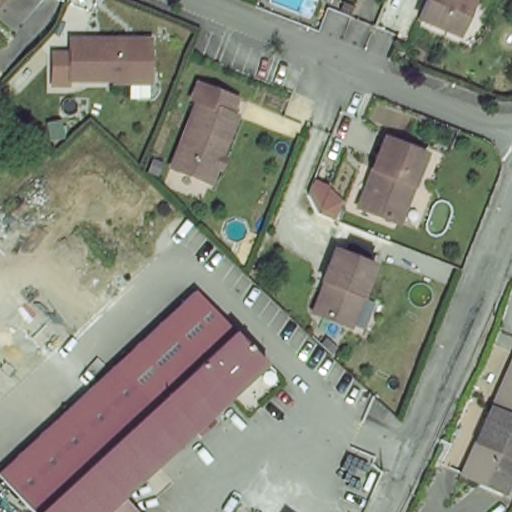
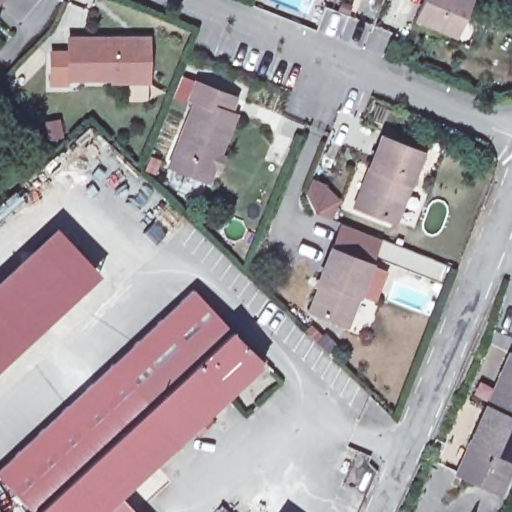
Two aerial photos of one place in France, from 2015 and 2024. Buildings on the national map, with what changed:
unchanged [(417,18),(424,0),(469,0),(455,34),(417,18)]
unchanged [(131,80),(115,80),(115,77),(70,77),(70,38),(138,39),(151,39),(151,51),(150,71),(150,81),(131,80)]
unchanged [(235,99),(228,114),(234,116),(208,183),(169,167),(195,102),(189,100),(196,84),(235,99)]
unchanged [(388,221),(352,207),(380,139),(420,155),(407,186),(393,224),(388,221)]
new [(330,219),(314,213),(306,193),(310,182),(340,193),(330,219)]
new [(98,270),(63,305),(0,366),(0,277),(56,224),(98,270)]
new [(329,255),(331,247),(341,225),(379,240),(371,262),(368,270),(329,255)]
unchanged [(368,270),(344,331),(307,316),(319,286),(316,285),(329,255),(368,270)]
unchanged [(0,467),(191,291),(192,290),(230,330),(32,512),(29,512),(0,481),(0,467)]
unchanged [(230,330),(265,365),(123,496),(138,512),(32,512),(230,330)]
unchanged [(487,405),(512,353),(512,354),(512,417),(487,405)]
unchanged [(491,486),(454,470),(487,405),(512,417),(512,463),(499,490),(491,486)]

